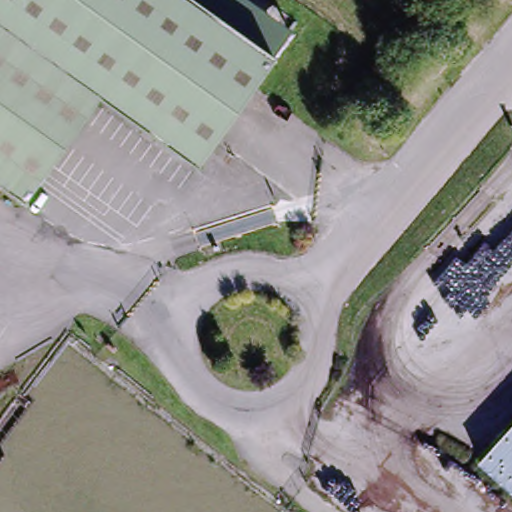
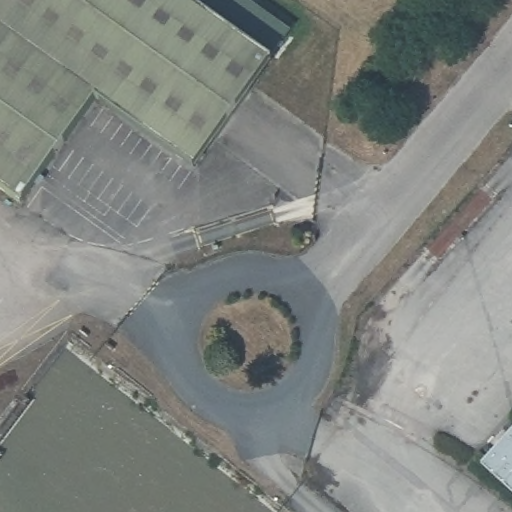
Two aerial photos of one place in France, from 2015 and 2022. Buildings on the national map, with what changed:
unchanged [(279,61),(202,170),(104,102),(110,93),(0,15),(0,0),(192,0),(279,61)]
unchanged [(104,102),(30,207),(0,186),(0,15),(110,93),(104,102)]
unchanged [(492,468),(512,444),(512,488),(492,468)]

